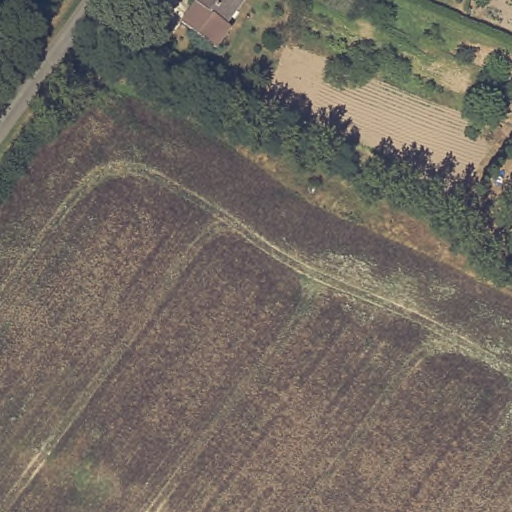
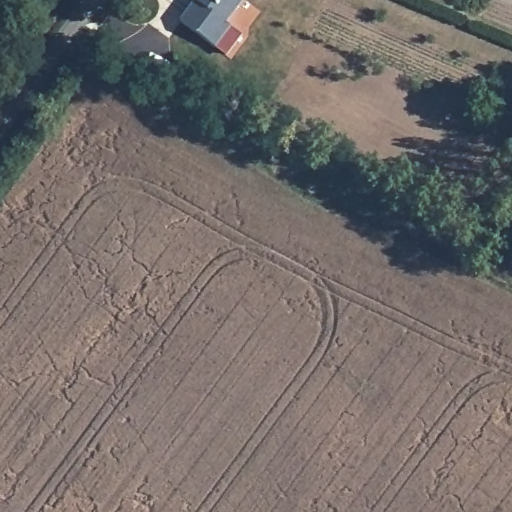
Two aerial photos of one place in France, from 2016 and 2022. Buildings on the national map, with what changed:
unchanged [(225,23),(229,26),(212,48),(180,23),(194,4),(189,0),(243,0),(225,23)]

